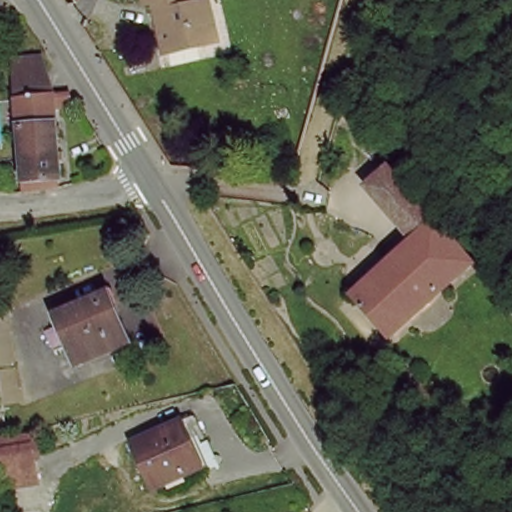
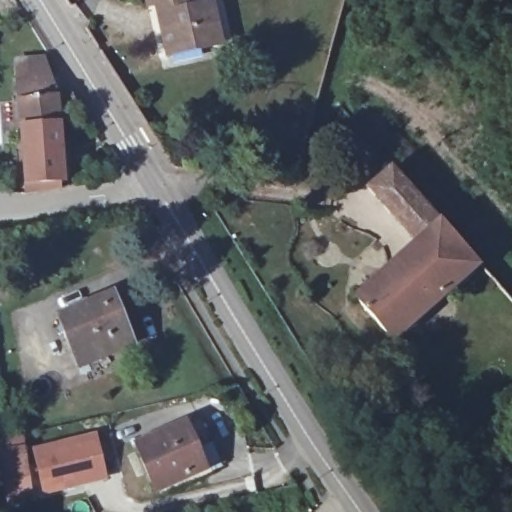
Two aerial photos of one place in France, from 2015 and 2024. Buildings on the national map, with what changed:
unchanged [(170,23),(165,2),(155,5),(154,0),(197,0),(199,6),(218,2),(227,43),(174,55),(167,23),(170,23)]
unchanged [(15,57),(48,53),(63,94),(71,175),(66,176),(67,183),(50,186),(32,190),(27,148),(25,136),(15,57)]
unchanged [(357,290),(418,236),(370,182),(392,162),(479,261),(471,268),(395,334),(357,290)]
unchanged [(58,314),(112,293),(131,340),(78,362),(58,314)]
unchanged [(137,440),(189,420),(208,468),(156,487),(137,440)]
new [(43,497),(33,449),(96,432),(109,481),(43,497)]
new [(23,435),(32,475),(11,479),(4,440),(23,435)]
demolished [(4,443),(39,435),(44,455),(34,457),(39,478),(13,486),(4,443)]

